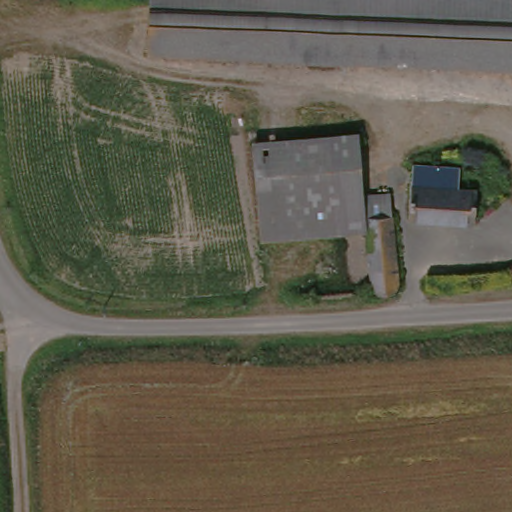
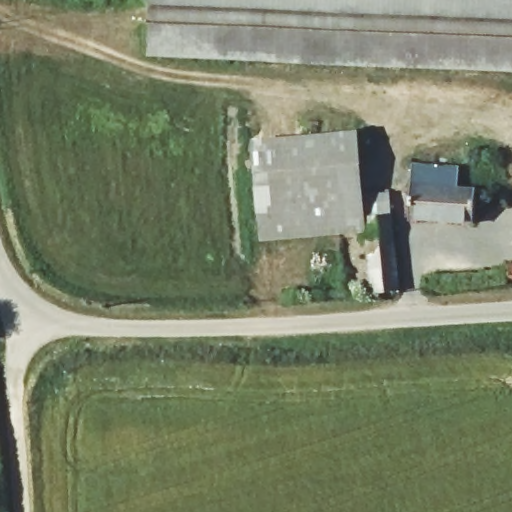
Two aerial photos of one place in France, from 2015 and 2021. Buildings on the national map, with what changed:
unchanged [(146,0),(273,0),(273,68),(142,62),(146,0)]
unchanged [(273,0),(512,0),(512,79),(273,68),(273,0)]
unchanged [(244,141),(271,137),(359,133),(359,140),(364,187),(264,191),(251,192),(244,141)]
unchanged [(409,193),(410,167),(457,169),(455,193),(409,193)]
unchanged [(364,189),(368,238),(258,249),(256,245),(251,192),(264,191),(364,187),(364,189)]
unchanged [(364,189),(392,187),(399,294),(371,296),(368,238),(364,189)]
unchanged [(455,193),(473,193),(474,226),(408,226),(409,193),(455,193)]

